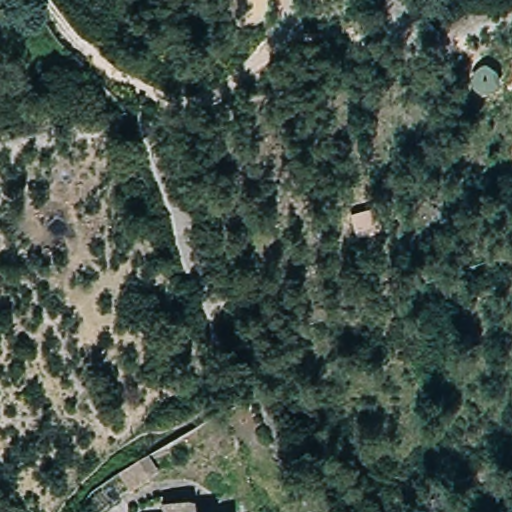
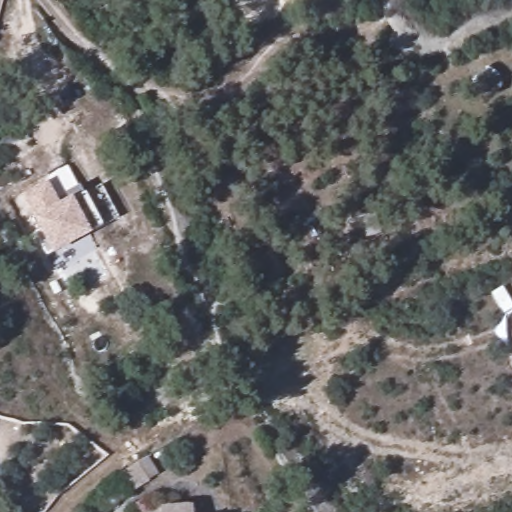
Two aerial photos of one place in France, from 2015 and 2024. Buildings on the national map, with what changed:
new [(60,203),(68,199),(64,193),(79,184),(85,193),(85,192),(87,196),(101,185),(119,218),(104,227),(90,233),(54,254),(48,257),(35,234),(41,233),(33,218),(20,196),(47,181),(60,203)]
unchanged [(136,460),(146,455),(156,472),(148,478),(148,479),(125,493),(114,474),(136,460)]
unchanged [(158,510),(182,508),(182,510),(191,509),(191,512),(159,512),(158,510)]

